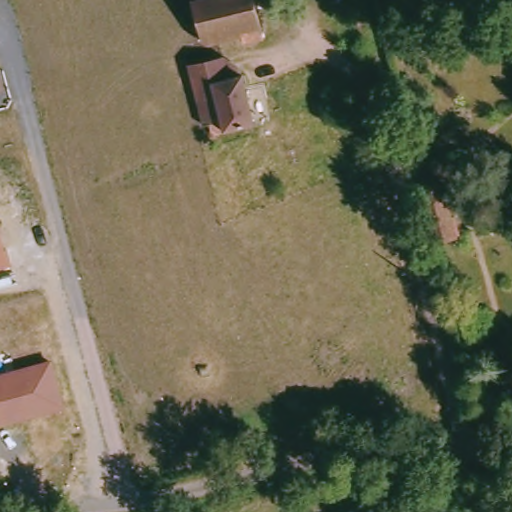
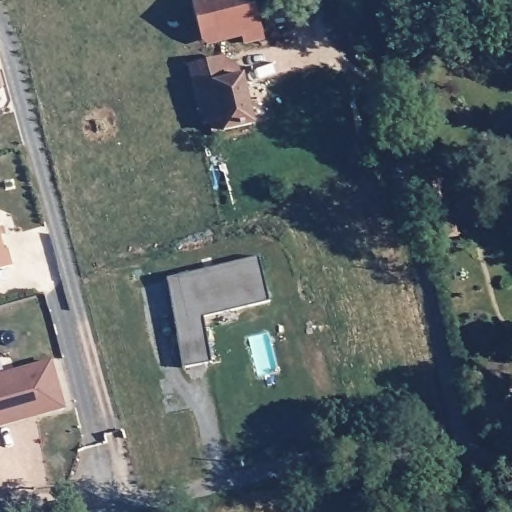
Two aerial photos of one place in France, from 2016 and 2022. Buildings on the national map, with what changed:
unchanged [(255,0),(264,38),(245,43),(241,31),(204,41),(194,3),(205,0),(255,0)]
unchanged [(210,137),(197,86),(191,66),(226,57),(241,66),(243,74),(255,124),(210,137)]
unchanged [(0,93),(0,83),(3,93),(0,93)]
unchanged [(447,179),(457,219),(462,218),(465,232),(439,238),(426,183),(447,179)]
unchanged [(0,269),(0,230),(11,266),(0,269)]
new [(184,367),(168,279),(259,258),(269,300),(203,316),(210,362),(184,367)]
unchanged [(65,410),(0,427),(0,373),(51,360),(65,410)]

